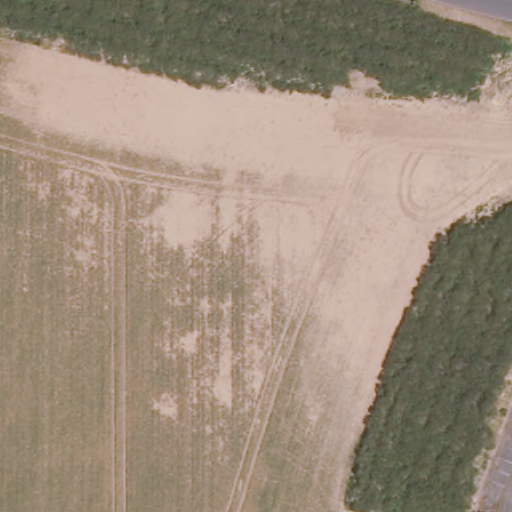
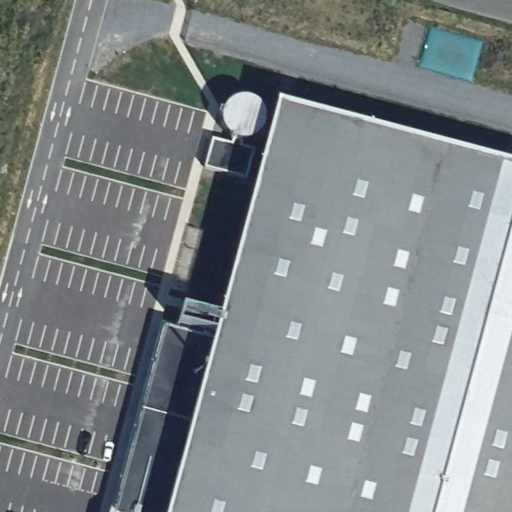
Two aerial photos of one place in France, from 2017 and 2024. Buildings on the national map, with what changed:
new [(158,325),(211,336),(272,107),(512,172),(512,512),(112,512),(158,325)]

